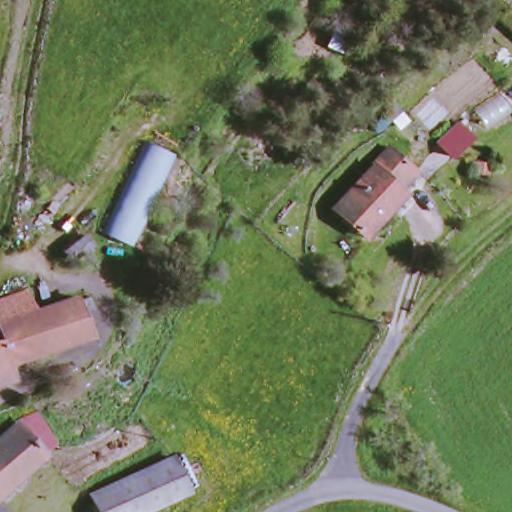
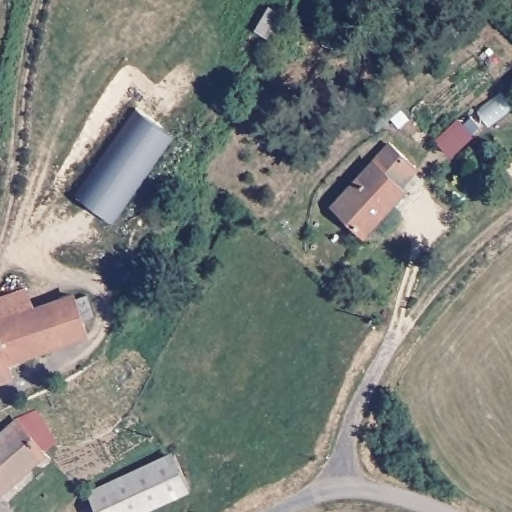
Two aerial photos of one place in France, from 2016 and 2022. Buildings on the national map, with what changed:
new [(451,163),(434,144),(458,118),(475,140),(451,163)]
new [(81,198),(136,119),(168,139),(114,221),(81,198)]
demolished [(99,224),(149,138),(177,156),(127,241),(99,224)]
unchanged [(390,141),(414,166),(398,185),(404,191),(365,236),(332,208),(390,141)]
unchanged [(0,335),(0,297),(20,289),(28,308),(70,292),(85,329),(9,357),(14,375),(0,380),(0,335)]
unchanged [(0,490),(0,428),(11,419),(40,453),(0,490)]
unchanged [(144,508),(123,478),(165,447),(186,478),(144,508)]
unchanged [(139,512),(96,512),(90,502),(123,478),(144,508),(139,512)]

